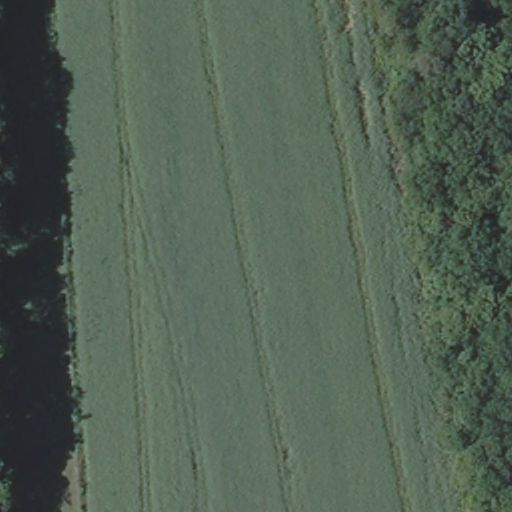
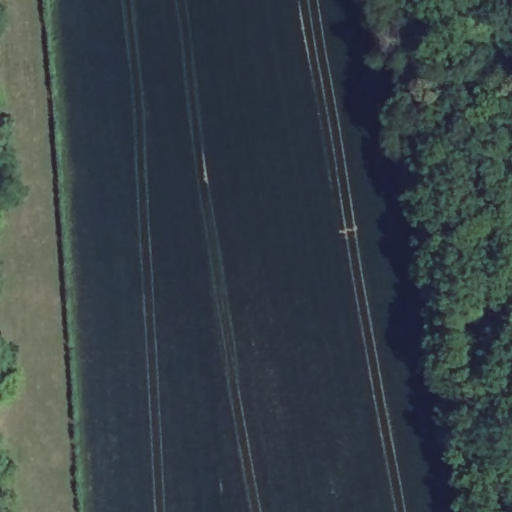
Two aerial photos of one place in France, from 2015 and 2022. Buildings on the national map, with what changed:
[]

